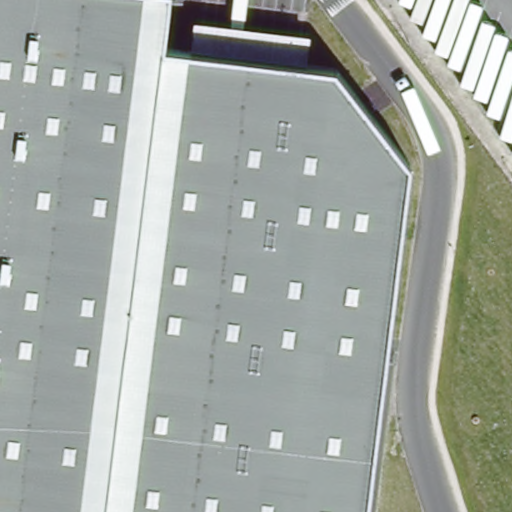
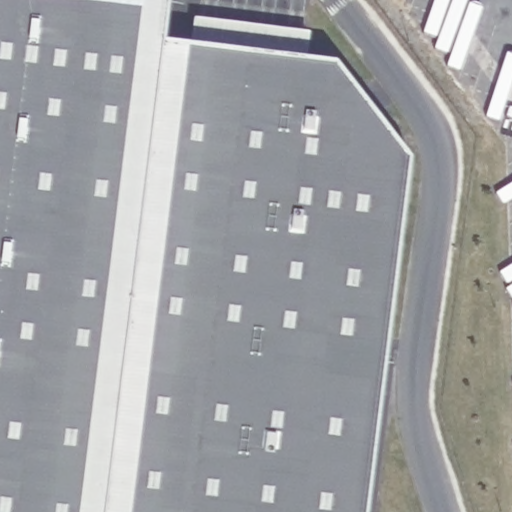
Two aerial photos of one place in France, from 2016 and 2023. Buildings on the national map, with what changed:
unchanged [(168,44),(338,65),(413,163),(370,512),(0,512),(0,0),(172,0),(168,44)]

